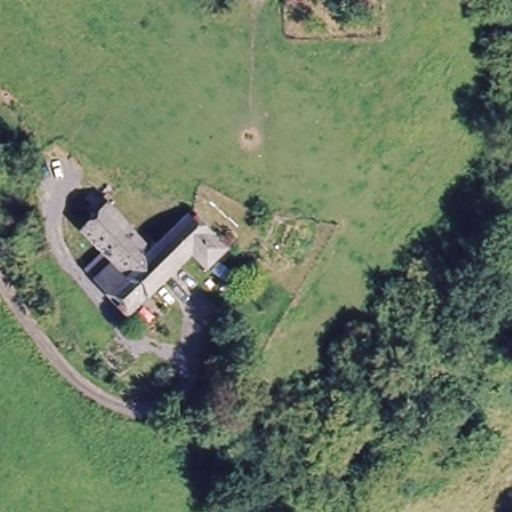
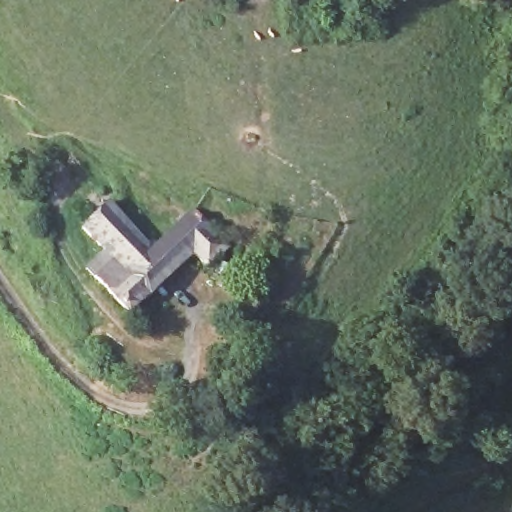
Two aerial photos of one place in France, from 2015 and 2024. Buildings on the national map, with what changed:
unchanged [(191,268),(131,318),(95,279),(110,261),(77,226),(105,201),(149,246),(193,210),(220,234),(234,251),(227,259),(204,276),(191,268)]

